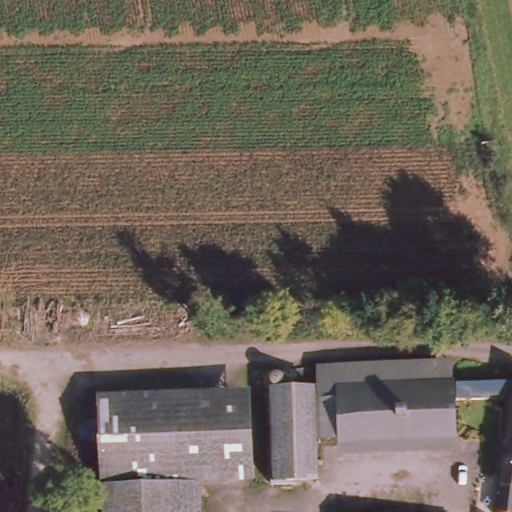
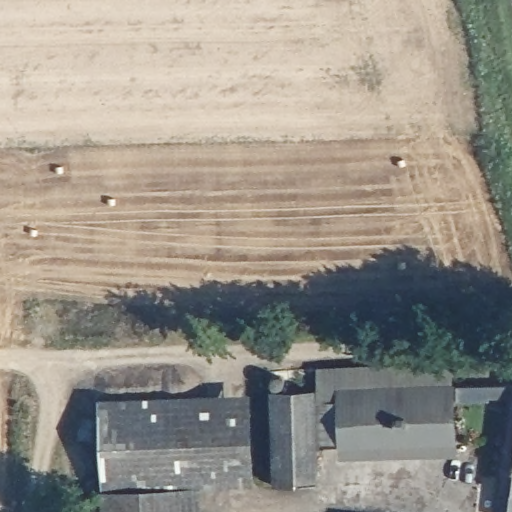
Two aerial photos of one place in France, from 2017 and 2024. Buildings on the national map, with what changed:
unchanged [(269,388),(316,388),(317,366),(453,359),(454,373),(512,377),(512,396),(454,394),(454,452),(339,456),(338,438),(317,438),(316,481),(271,482),(269,388)]
unchanged [(97,396),(250,391),(250,482),(199,485),(200,512),(102,512),(97,396)]
unchanged [(512,407),(512,512),(497,512),(512,407)]

